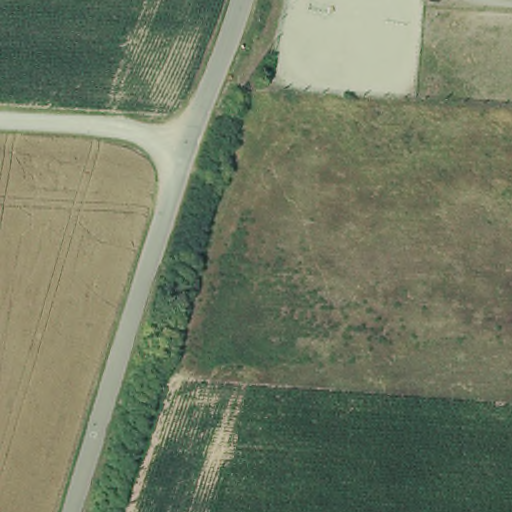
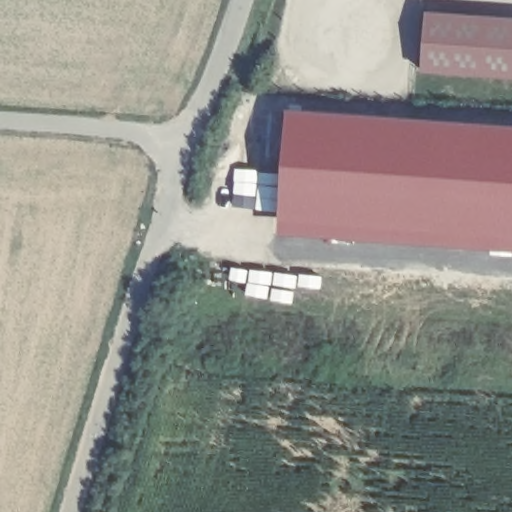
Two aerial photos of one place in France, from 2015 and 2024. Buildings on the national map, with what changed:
new [(422,72),(425,11),(512,17),(512,78),(422,72)]
new [(512,128),(512,250),(287,232),(288,112),(512,128)]

